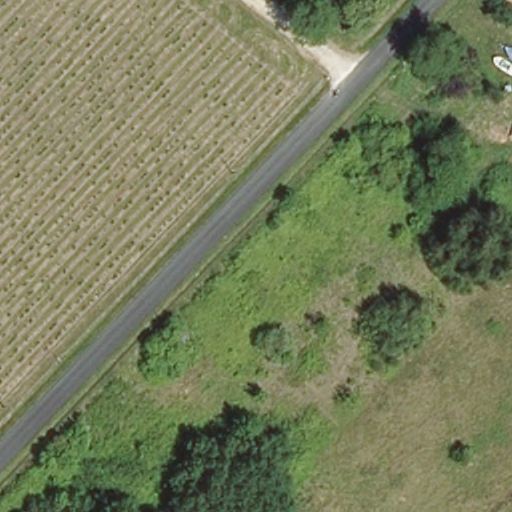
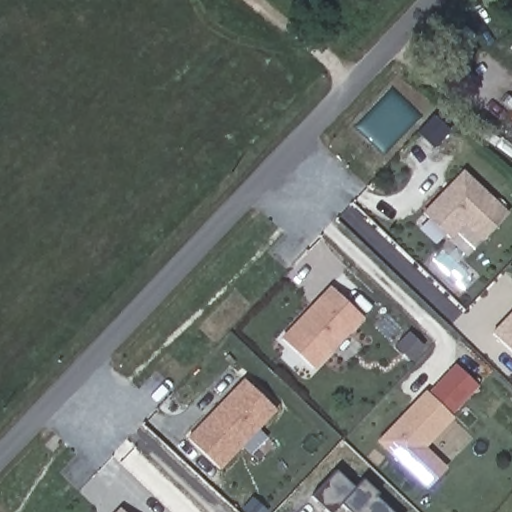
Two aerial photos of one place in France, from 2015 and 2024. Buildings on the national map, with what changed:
new [(467,171),(511,214),(485,241),(469,227),(453,242),(424,215),(467,171)]
new [(285,340),(333,287),(368,320),(321,370),(285,340)]
new [(512,349),(494,332),(512,314),(512,349)]
new [(431,489),(378,444),(430,392),(433,395),(460,367),(483,387),(455,416),(460,418),(430,449),(449,468),(431,489)]
new [(248,379),(284,412),(221,472),(190,437),(248,379)]
new [(344,507),(338,512),(330,512),(313,495),(339,472),(358,488),(367,480),(399,512),(349,512),(344,507)]
new [(122,509),(126,512),(119,512),(122,509)]

